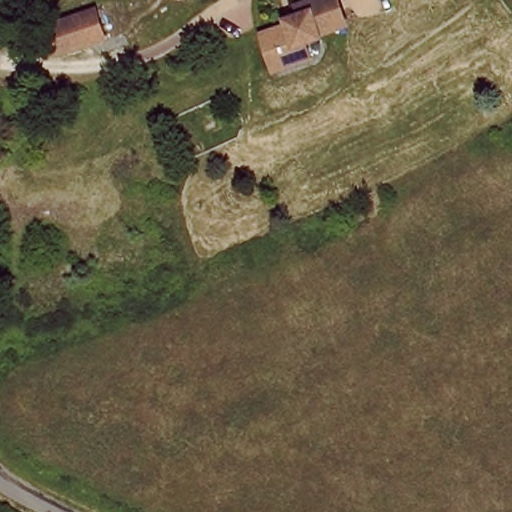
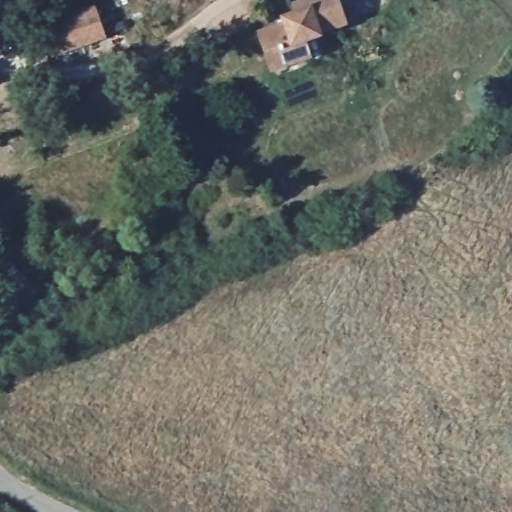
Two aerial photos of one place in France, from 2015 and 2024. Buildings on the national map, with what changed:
unchanged [(268,55),(262,37),(284,30),(282,24),(299,19),(295,7),(316,0),(336,0),(347,27),(322,36),(324,45),(306,51),(310,62),(289,70),(275,75),(268,55)]
unchanged [(104,40),(54,56),(45,29),(94,11),(104,40)]

